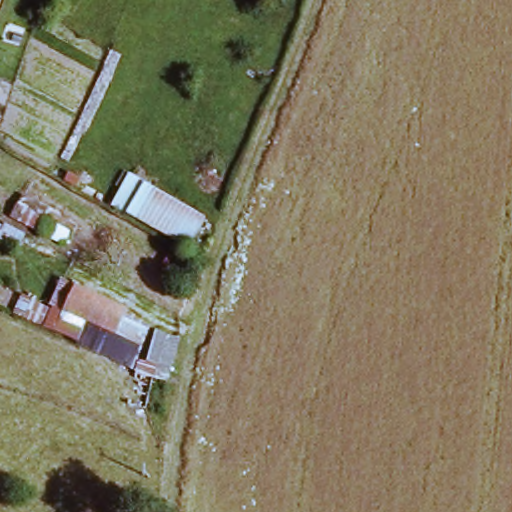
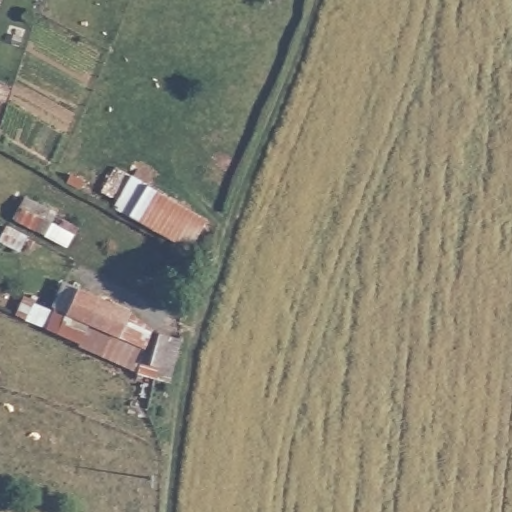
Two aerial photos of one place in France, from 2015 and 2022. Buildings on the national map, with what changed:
unchanged [(148,184),(209,220),(187,251),(127,217),(148,184)]
unchanged [(35,206),(30,214),(40,222),(35,230),(12,217),(24,200),(35,206)]
unchanged [(52,309),(60,281),(80,289),(65,322),(59,338),(14,316),(23,296),(52,309)]
unchanged [(115,344),(65,322),(80,289),(129,311),(115,344)]
unchanged [(100,354),(59,338),(65,322),(115,344),(142,356),(148,341),(170,346),(162,381),(154,418),(134,414),(143,373),(100,354)]

